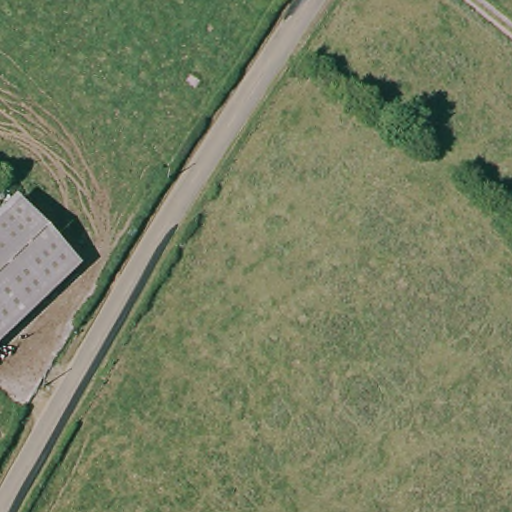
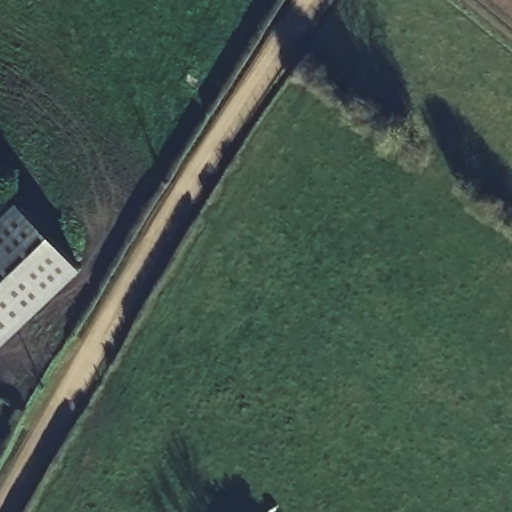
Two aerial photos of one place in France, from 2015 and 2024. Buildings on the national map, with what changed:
unchanged [(77,254),(0,342),(0,201),(7,193),(77,254)]

